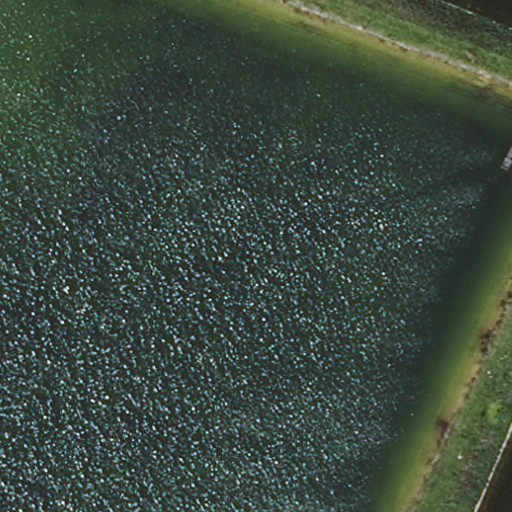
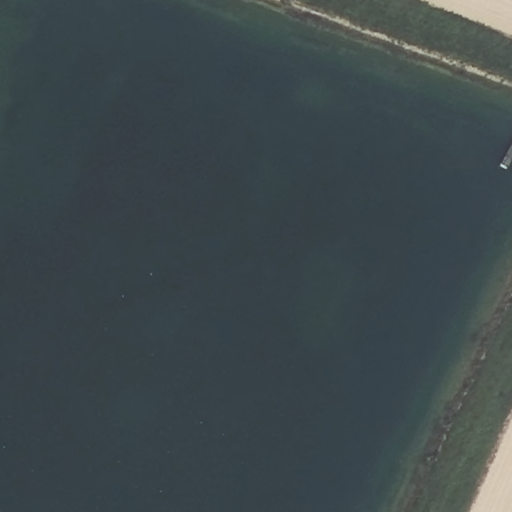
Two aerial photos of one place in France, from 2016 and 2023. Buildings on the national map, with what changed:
[]

